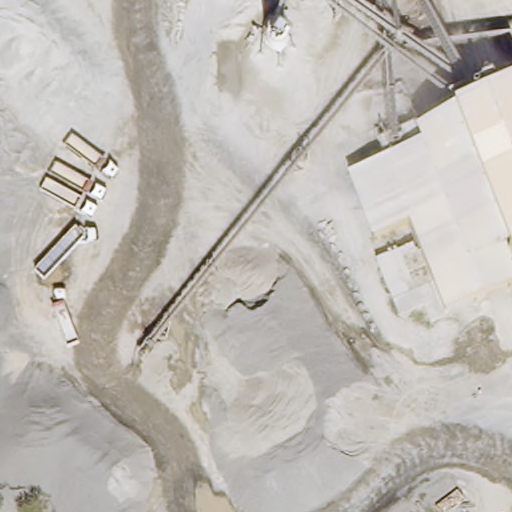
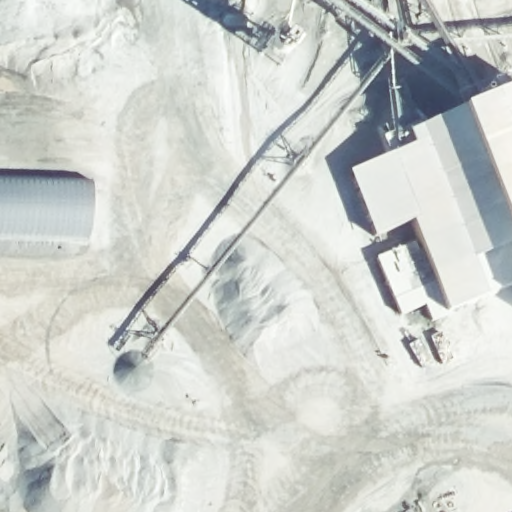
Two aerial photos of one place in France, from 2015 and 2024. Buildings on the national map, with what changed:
unchanged [(480,124),(484,122),(485,126),(512,202),(512,260),(468,128),(480,124)]
unchanged [(468,128),(512,260),(512,278),(448,303),(424,240),(408,247),(401,223),(384,156),(468,128)]
unchanged [(354,165),(384,156),(401,223),(373,231),(354,165)]
new [(35,175),(90,179),(87,240),(0,236),(0,173),(35,175)]
unchanged [(453,312),(431,320),(425,304),(402,315),(381,258),(408,247),(424,240),(448,303),(453,312)]

